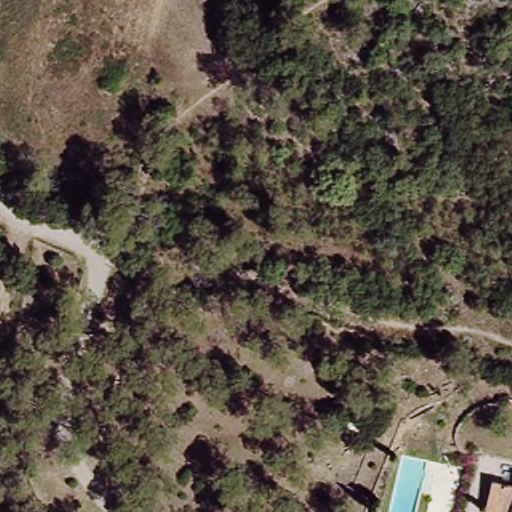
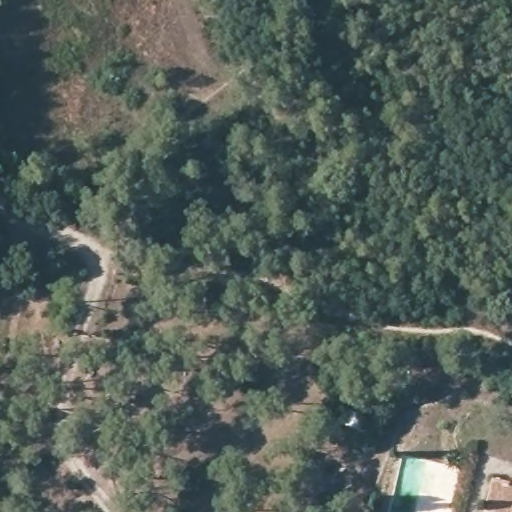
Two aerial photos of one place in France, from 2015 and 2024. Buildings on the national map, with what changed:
unchanged [(483,511),(490,479),(509,484),(511,473),(512,473),(512,512),(488,512),(483,511)]

